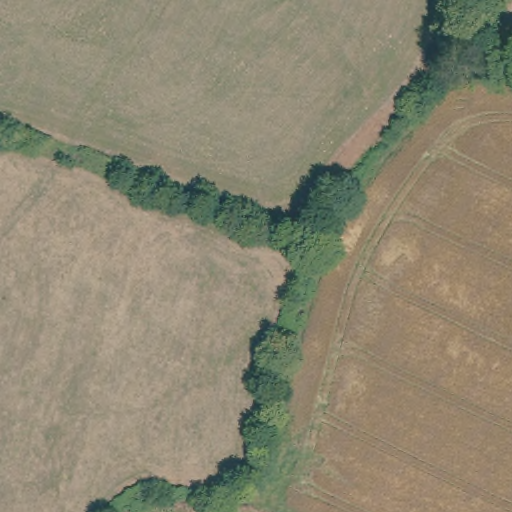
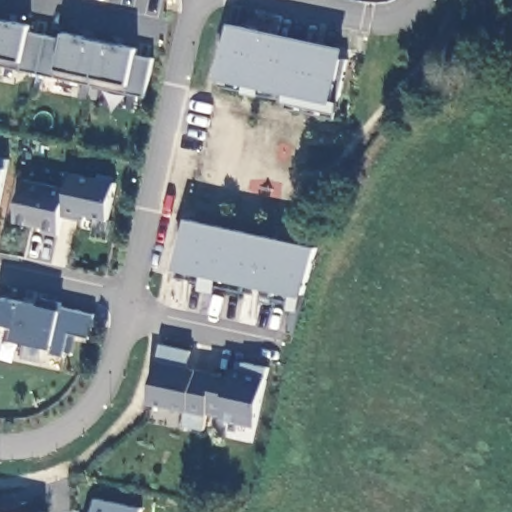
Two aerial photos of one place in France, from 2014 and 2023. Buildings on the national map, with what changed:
new [(145,96),(0,64),(0,18),(31,25),(29,32),(64,39),(66,32),(137,48),(136,55),(153,58),(145,96)]
new [(343,59),(348,60),(340,101),(338,113),(286,101),(288,93),(262,87),(260,96),(246,92),(247,84),(219,78),(230,23),(345,48),(343,59)]
new [(0,203),(0,156),(10,158),(0,203)]
new [(109,220),(81,214),(79,219),(63,216),(59,235),(44,232),(44,228),(15,222),(25,179),(69,189),(72,173),(116,182),(109,220)]
new [(317,246),(300,311),(291,309),(295,294),(178,268),(189,217),(317,246)]
new [(20,300),(59,309),(95,313),(90,337),(76,334),(72,354),(65,351),(65,356),(61,355),(52,353),(53,348),(15,339),(20,300)]
new [(208,412),(188,411),(150,403),(162,342),(192,349),(188,365),(216,373),(208,412)]
new [(256,425),(222,419),(223,415),(208,412),(216,373),(230,376),(232,369),(242,371),(243,361),(269,367),(256,425)]
new [(143,509),(143,512),(96,512),(98,499),(143,509)]

